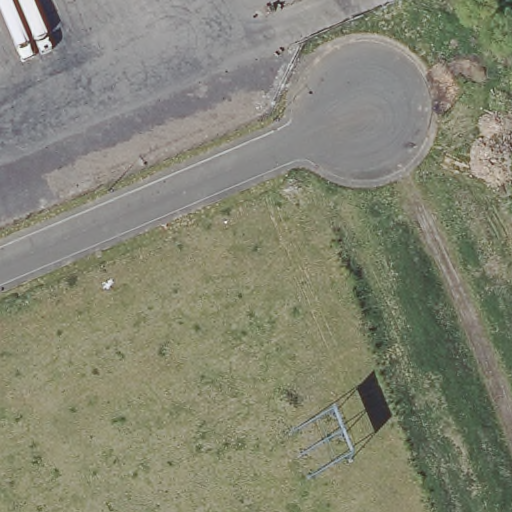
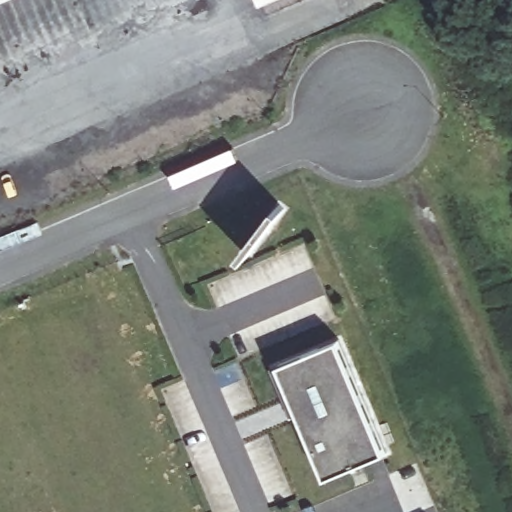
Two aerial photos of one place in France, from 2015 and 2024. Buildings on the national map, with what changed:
new [(387,451),(327,477),(293,398),(284,402),(270,368),(279,364),(340,338),(387,451)]

